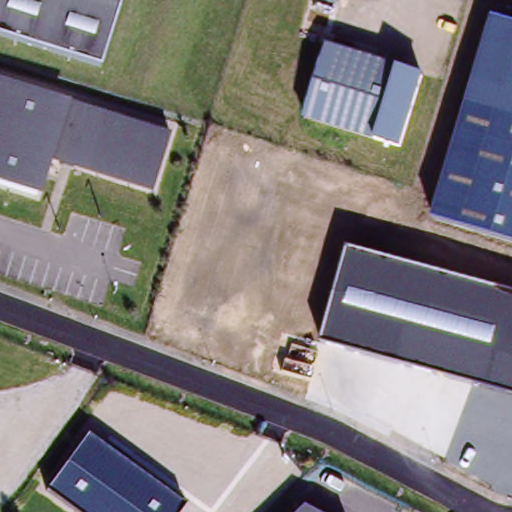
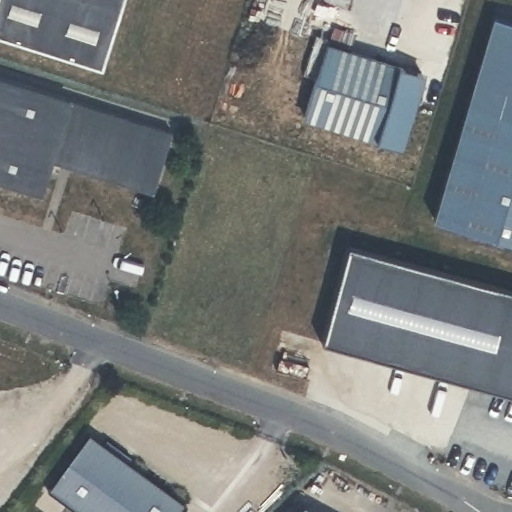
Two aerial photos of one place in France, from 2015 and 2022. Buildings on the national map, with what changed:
unchanged [(0,39),(0,0),(126,0),(104,71),(0,39)]
unchanged [(512,241),(438,219),(500,16),(512,20),(512,241)]
unchanged [(425,76),(402,146),(307,118),(330,46),(425,76)]
unchanged [(170,133),(152,193),(52,162),(41,198),(0,185),(0,80),(170,133)]
unchanged [(512,292),(512,392),(322,339),(349,246),(512,292)]
unchanged [(183,504),(178,512),(74,512),(47,491),(87,434),(183,504)]
unchanged [(313,512),(295,512),(301,506),(313,512)]

